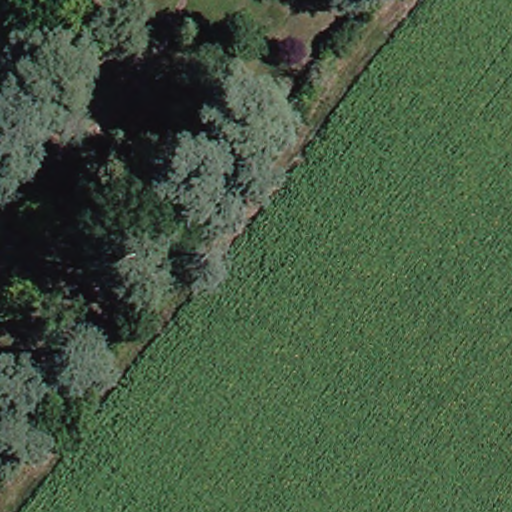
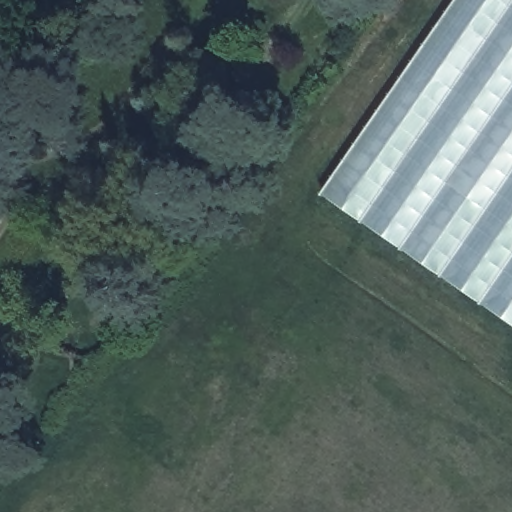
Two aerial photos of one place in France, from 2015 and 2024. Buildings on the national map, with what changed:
new [(323,195),(456,0),(512,0),(512,325),(323,195)]

